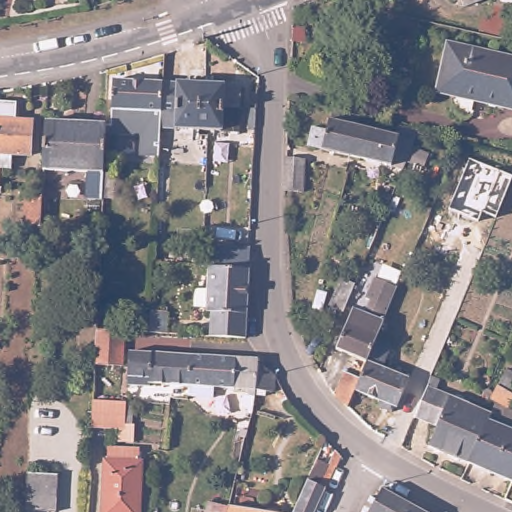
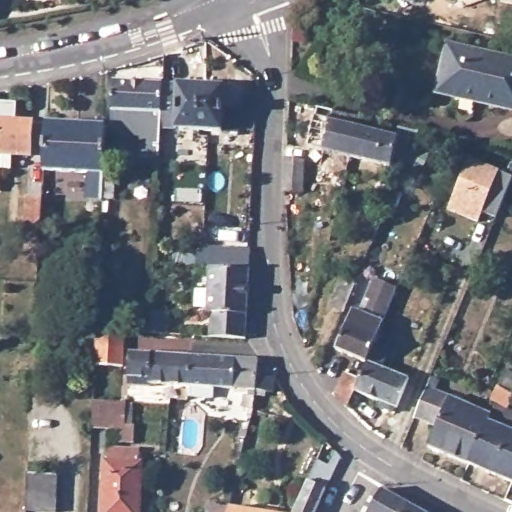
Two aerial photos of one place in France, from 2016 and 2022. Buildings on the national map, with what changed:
unchanged [(451,0),(453,0),(451,1),(451,0)]
unchanged [(462,0),(484,0),(464,8),(462,0)]
unchanged [(512,59),(512,111),(459,99),(460,94),(437,89),(448,45),(512,59)]
unchanged [(159,124),(159,134),(151,134),(152,126),(146,126),(147,106),(135,106),(111,104),(113,75),(162,77),(160,108),(159,124)]
unchanged [(200,80),(197,126),(159,124),(160,108),(162,77),(200,80)]
unchanged [(197,126),(200,80),(239,81),(237,128),(197,126)]
unchanged [(22,99),(21,115),(37,116),(35,150),(6,148),(4,182),(0,182),(0,97),(22,99)]
unchanged [(256,121),(247,121),(247,105),(257,106),(256,121)]
unchanged [(355,117),(353,127),(345,157),(304,147),(309,127),(323,131),(325,121),(327,121),(329,111),(355,117)]
unchanged [(48,171),(50,121),(110,125),(106,201),(92,200),(93,174),(48,171)]
unchanged [(392,136),(394,126),(415,131),(414,134),(420,136),(417,143),(411,140),(399,171),(345,157),(353,127),(392,136)]
unchanged [(512,179),(496,217),(483,212),(478,223),(447,210),(469,158),(512,174),(512,179)]
unchanged [(285,159),(305,161),(303,193),(284,192),(285,159)]
unchanged [(40,228),(24,228),(26,198),(42,198),(41,207),(40,228)]
unchanged [(209,328),(210,306),(207,306),(207,302),(194,301),(195,283),(208,284),(209,259),(202,259),(195,258),(195,250),(202,250),(209,250),(209,248),(249,250),(248,262),(246,307),(246,314),(245,331),(209,328)]
unchanged [(333,307),(344,280),(356,284),(344,313),(333,307)]
unchanged [(338,350),(354,309),(369,315),(377,294),(393,301),(384,324),(379,337),(368,362),(338,350)]
unchanged [(149,313),(165,313),(164,335),(148,335),(149,313)]
unchanged [(96,383),(97,371),(99,336),(127,338),(125,372),(110,371),(109,384),(96,383)]
unchanged [(383,339),(380,344),(383,345),(387,336),(399,341),(396,350),(391,349),(384,367),(409,377),(405,387),(417,392),(409,411),(395,405),(392,412),(378,406),(380,400),(357,390),(368,362),(379,337),(383,339)]
unchanged [(192,393),(147,391),(147,386),(132,385),(133,359),(194,362),(192,393)]
unchanged [(247,401),(251,401),(252,397),(192,393),(194,362),(260,365),(262,368),(261,371),(278,382),(276,398),(269,398),(269,402),(258,401),(256,415),(244,413),(247,401)]
unchanged [(512,373),(512,400),(507,408),(489,398),(505,369),(512,373)]
unchanged [(357,390),(349,409),(337,396),(341,383),(357,390)]
unchanged [(427,387),(490,413),(487,420),(468,462),(429,446),(437,426),(415,417),(427,387)]
unchanged [(89,425),(90,399),(123,401),(121,427),(89,425)]
unchanged [(500,425),(512,430),(512,480),(468,462),(487,420),(500,425)]
unchanged [(244,437),(239,436),(240,429),(246,430),(244,437)]
unchanged [(106,458),(108,458),(108,446),(139,447),(139,459),(141,460),(141,512),(106,512),(106,458)]
unchanged [(314,457),(326,462),(327,459),(329,455),(333,448),(339,454),(337,457),(336,459),(335,461),(333,465),(324,485),(313,512),(290,512),(314,457)]
unchanged [(26,508),(28,471),(58,473),(56,510),(26,508)]
unchanged [(376,497),(381,500),(388,486),(435,512),(367,512),(376,497)]
unchanged [(206,501),(226,504),(280,512),(204,512),(206,501)]

